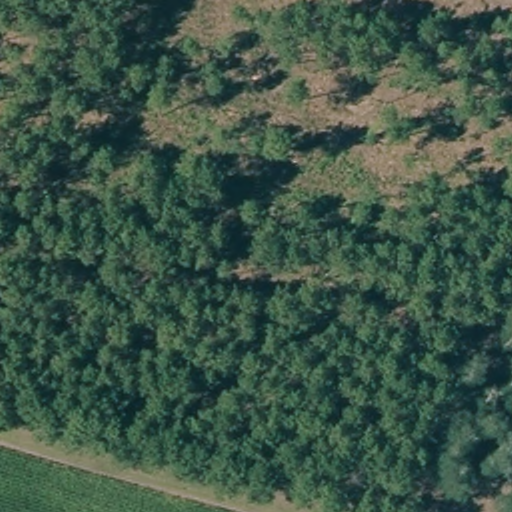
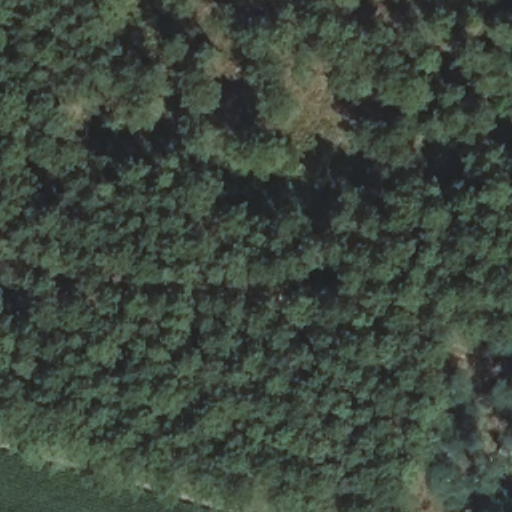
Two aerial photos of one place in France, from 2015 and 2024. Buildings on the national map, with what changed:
[]

